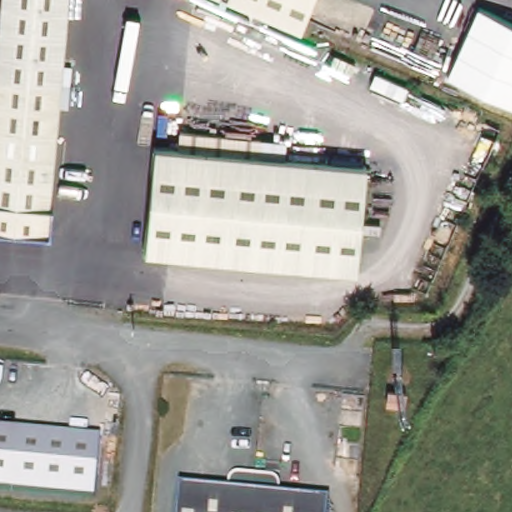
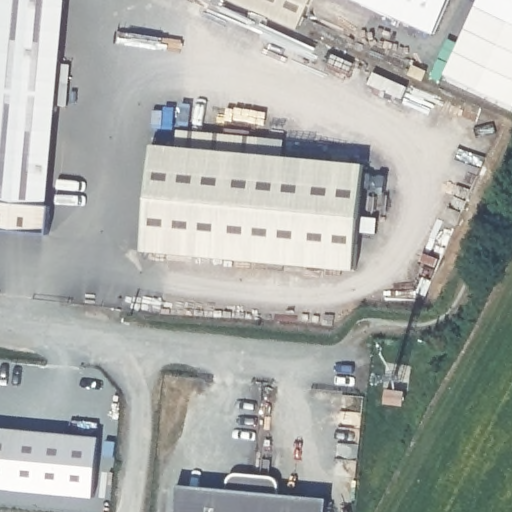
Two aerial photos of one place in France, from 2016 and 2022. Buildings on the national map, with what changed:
unchanged [(69,125),(55,124),(48,205),(54,206),(52,230),(5,225),(0,225),(0,5),(0,0),(64,0),(57,81),(72,83),(69,125)]
unchanged [(302,34),(224,0),(317,0),(302,34)]
new [(435,34),(357,0),(450,0),(435,34)]
unchanged [(512,106),(445,75),(478,5),(512,21),(512,106)]
unchanged [(239,149),(230,255),(136,246),(145,140),(239,149)]
unchanged [(360,159),(353,265),(230,255),(239,149),(360,159)]
unchanged [(17,435),(96,442),(91,503),(12,495),(0,494),(0,433),(17,435)]
unchanged [(235,477),(245,473),(258,474),(255,512),(179,512),(181,485),(227,487),(235,477)]
unchanged [(275,481),(280,491),(330,496),(329,512),(255,512),(258,474),(268,475),(275,481)]

